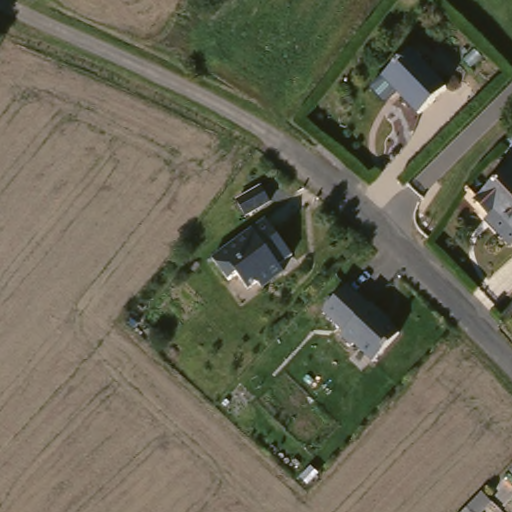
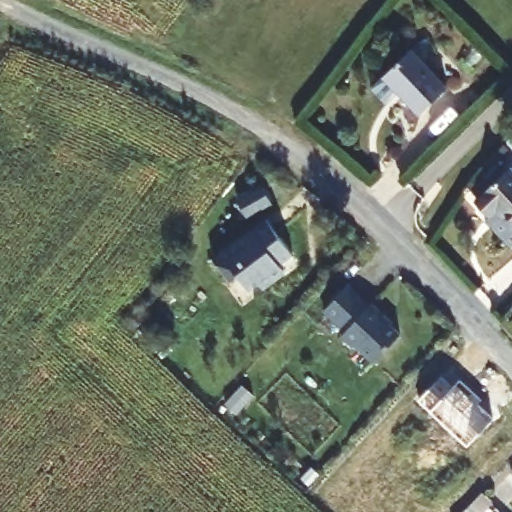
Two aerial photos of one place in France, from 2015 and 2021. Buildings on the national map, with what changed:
unchanged [(411,52),(446,87),(417,112),(383,80),(411,52)]
unchanged [(490,222),(494,217),(481,202),(512,173),(512,246),(490,222)]
unchanged [(300,257),(287,267),(291,272),(269,288),(265,282),(256,290),(245,276),(236,282),(220,259),(272,220),(300,257)]
unchanged [(322,311),(351,282),(402,331),(375,358),(322,311)]
new [(440,381),(452,392),(458,384),(472,398),(469,401),(492,423),(467,451),(417,404),(440,381)]
unchanged [(509,484),(512,481),(512,487),(509,484)]
unchanged [(471,512),(467,512),(469,510),(471,512)]

